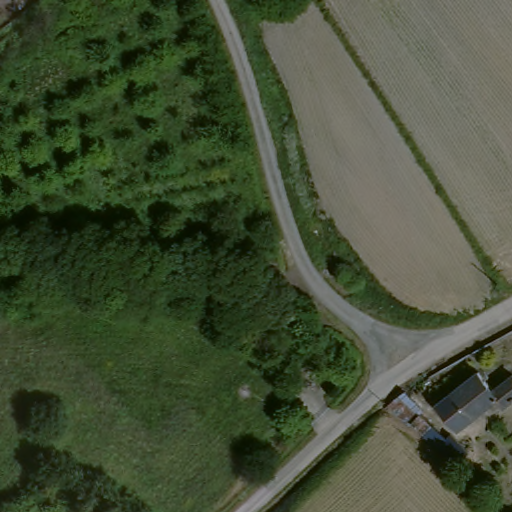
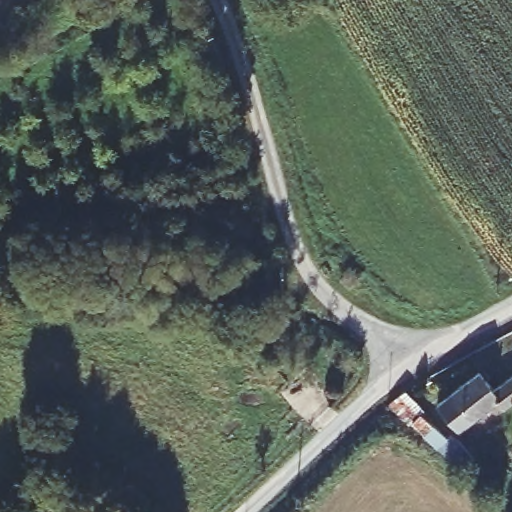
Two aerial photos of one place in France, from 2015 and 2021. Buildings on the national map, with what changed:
unchanged [(443,418),(448,414),(437,400),(476,370),(490,390),(512,372),(512,399),(503,406),(496,398),(470,418),(453,430),(443,418)]
unchanged [(404,390),(418,406),(404,417),(388,402),(404,390)]
unchanged [(410,422),(419,413),(444,437),(450,432),(453,435),(468,449),(452,463),(410,422)]

